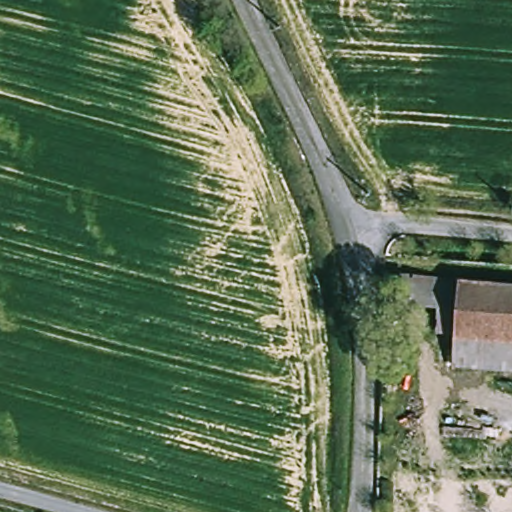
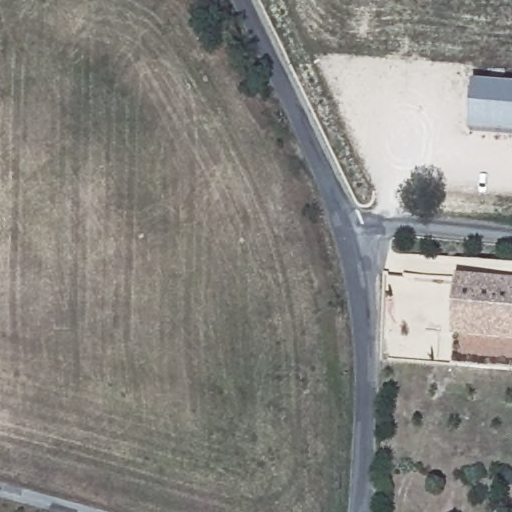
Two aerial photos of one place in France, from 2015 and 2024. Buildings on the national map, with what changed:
new [(512,134),(470,130),(475,81),(512,84),(512,134)]
unchanged [(456,305),(396,299),(399,272),(458,278),(456,305)]
unchanged [(456,305),(458,278),(512,283),(512,375),(450,369),(456,305)]

